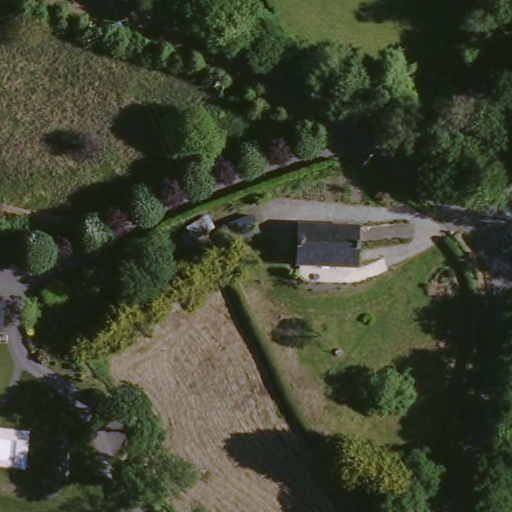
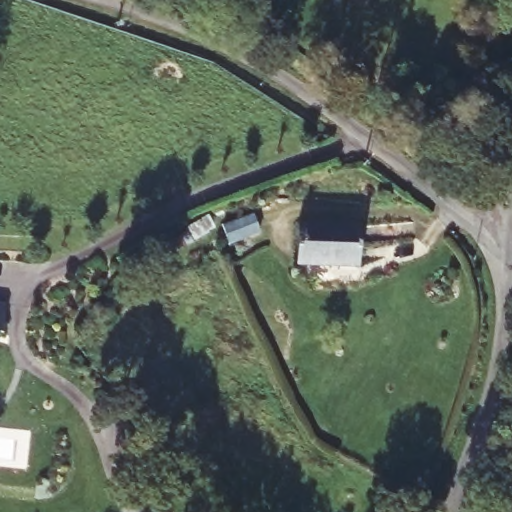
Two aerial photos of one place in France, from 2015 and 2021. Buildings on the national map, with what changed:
unchanged [(247,220),(256,239),(227,250),(219,231),(247,220)]
unchanged [(294,224),(356,232),(352,271),(289,263),(294,224)]

